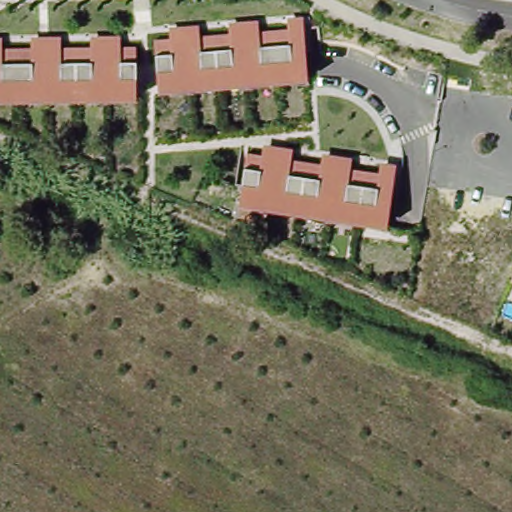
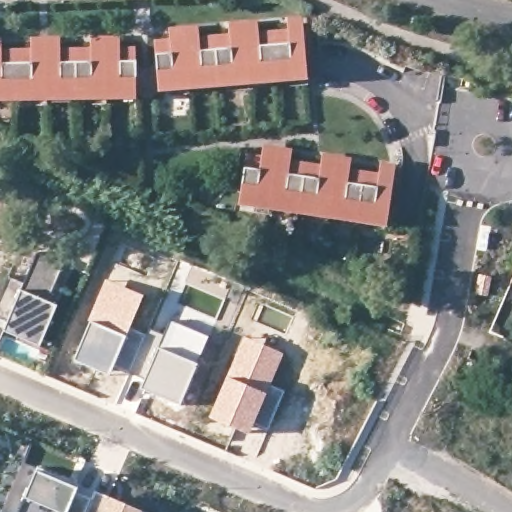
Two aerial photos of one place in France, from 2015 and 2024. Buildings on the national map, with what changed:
unchanged [(306,84),(156,94),(155,71),(135,73),(137,100),(0,104),(0,49),(30,48),(30,45),(58,44),(58,51),(90,50),(91,45),(117,45),(118,49),(152,46),(152,40),(168,38),(167,29),(197,28),(197,35),(226,33),(226,25),(252,25),(253,31),(286,28),(286,19),(303,19),(306,84)]
unchanged [(386,231),(231,212),(234,164),(250,166),(253,150),(289,156),(287,164),(316,166),(318,160),(348,164),(347,170),(376,173),(378,168),(393,170),(386,231)]
new [(38,246),(67,257),(50,300),(58,303),(37,351),(1,332),(38,246)]
unchanged [(512,271),(512,283),(507,281),(512,271)]
new [(22,283),(2,329),(0,327),(0,297),(9,277),(22,283)]
new [(142,349),(129,375),(113,368),(109,376),(71,361),(105,278),(143,294),(130,328),(148,334),(142,349)]
new [(180,406),(142,389),(144,382),(129,375),(142,349),(148,334),(150,329),(164,334),(171,320),(176,321),(184,304),(216,319),(209,335),(198,364),(180,406)]
new [(266,433),(252,427),(248,435),(207,418),(242,334),(284,353),(270,384),(284,391),(266,433)]
new [(66,512),(2,512),(0,512),(22,462),(35,468),(77,487),(66,512)]
new [(95,491),(144,511),(146,512),(86,512),(95,491)]
new [(86,512),(66,512),(75,493),(92,499),(86,512)]

